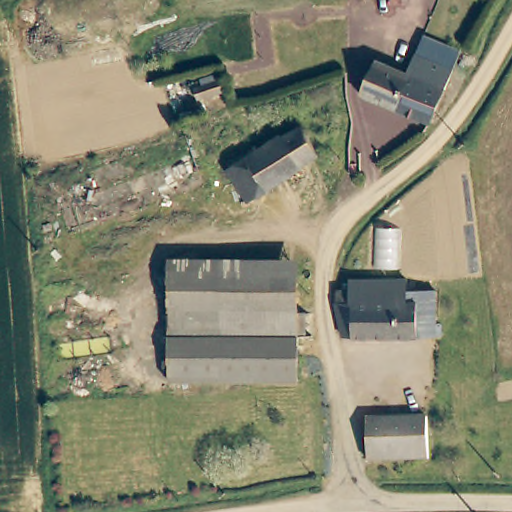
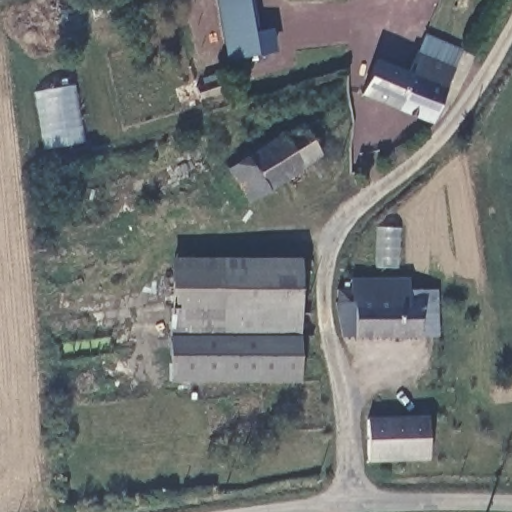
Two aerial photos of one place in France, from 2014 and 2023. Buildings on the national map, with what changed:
new [(225,59),(215,0),(247,0),(255,55),(225,59)]
unchanged [(452,70),(430,122),(359,95),(375,61),(405,73),(416,50),(422,36),(450,47),(445,59),(442,66),(452,70)]
new [(39,150),(29,92),(70,85),(79,142),(59,146),(39,150)]
unchanged [(318,157),(248,202),(224,168),(296,122),(318,157)]
unchanged [(302,300),(165,298),(166,258),(303,260),(302,300)]
unchanged [(421,330),(343,330),(336,304),(333,297),(338,297),(338,284),(352,284),(351,273),(410,273),(410,284),(413,284),(420,284),(438,284),(436,330),(421,330)]
unchanged [(302,300),(302,305),(318,306),(318,331),(302,331),(301,373),(165,372),(165,298),(302,300)]
unchanged [(431,455),(368,461),(365,417),(427,411),(431,455)]

